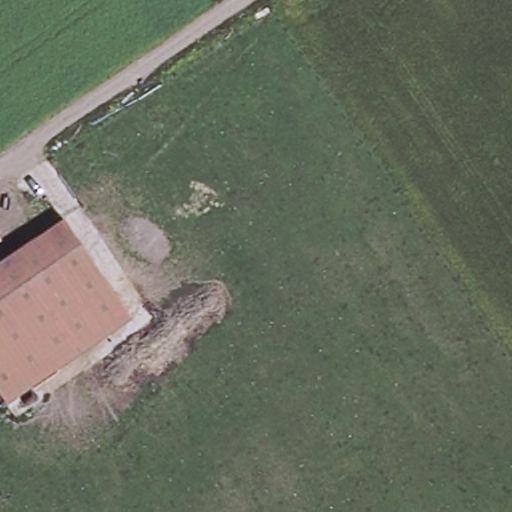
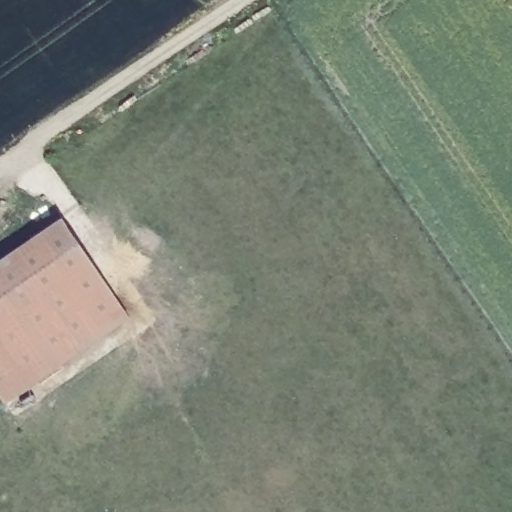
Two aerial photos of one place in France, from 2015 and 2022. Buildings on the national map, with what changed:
unchanged [(60,216),(130,318),(4,406),(0,400),(0,257),(60,216)]

